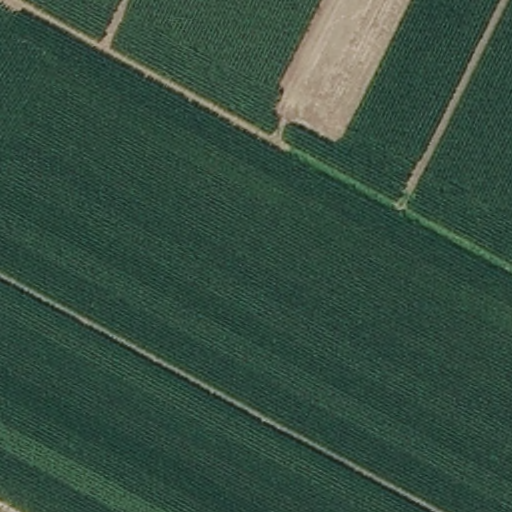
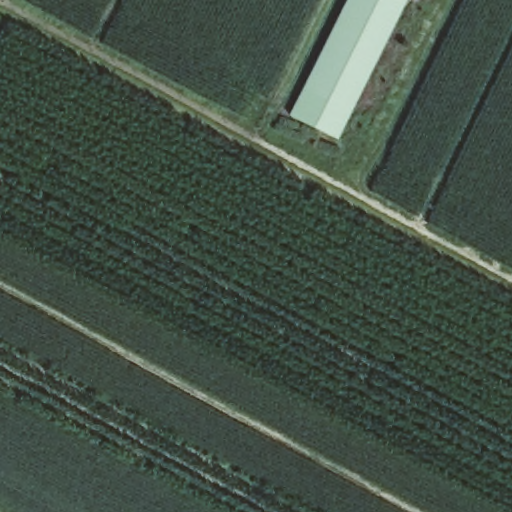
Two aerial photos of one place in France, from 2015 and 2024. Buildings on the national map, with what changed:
new [(358,0),(411,0),(348,130),(305,109),(358,0)]

